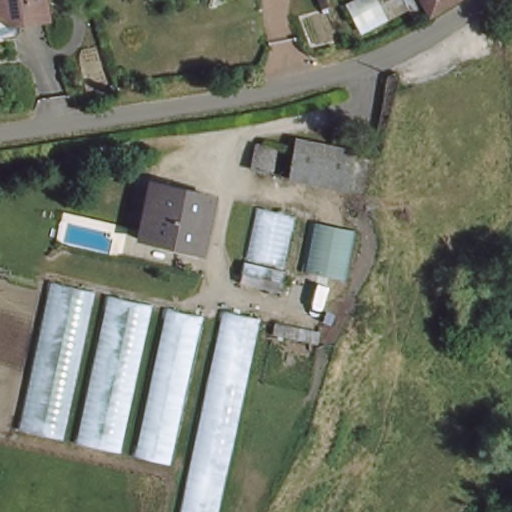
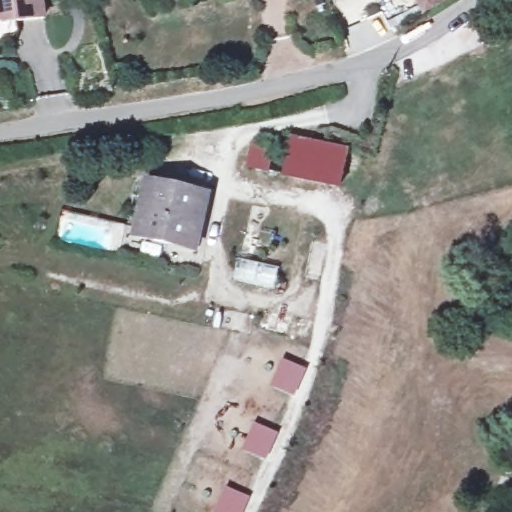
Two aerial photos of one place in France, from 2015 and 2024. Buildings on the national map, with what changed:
unchanged [(12,25),(10,16),(0,16),(0,0),(36,0),(38,23),(12,25)]
unchanged [(355,32),(342,0),(396,0),(400,7),(355,32)]
unchanged [(410,25),(400,7),(396,0),(452,0),(410,25)]
unchanged [(340,156),(335,190),(282,179),(288,145),(340,156)]
unchanged [(266,176),(246,172),(251,147),(271,150),(266,176)]
unchanged [(206,197),(201,225),(196,224),(191,247),(151,236),(150,244),(129,239),(143,183),(206,197)]
demolished [(297,266),(306,216),(347,225),(338,275),(297,266)]
demolished [(174,512),(185,462),(16,423),(49,280),(217,312),(217,305),(254,314),(211,512),(174,512)]
new [(302,373),(292,397),(268,386),(280,363),(302,373)]
new [(274,437),(262,461),(241,450),(253,427),(274,437)]
new [(239,512),(214,512),(223,492),(245,500),(239,512)]

